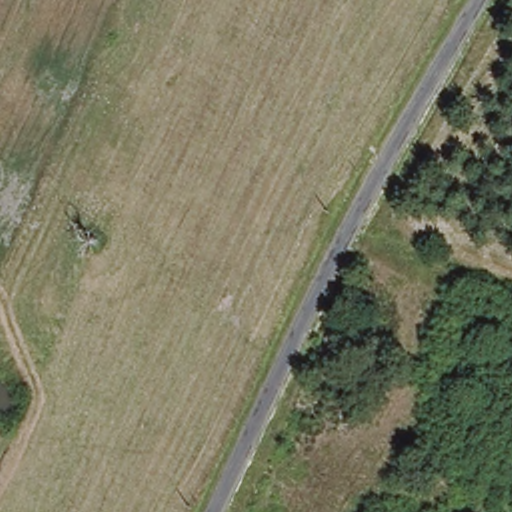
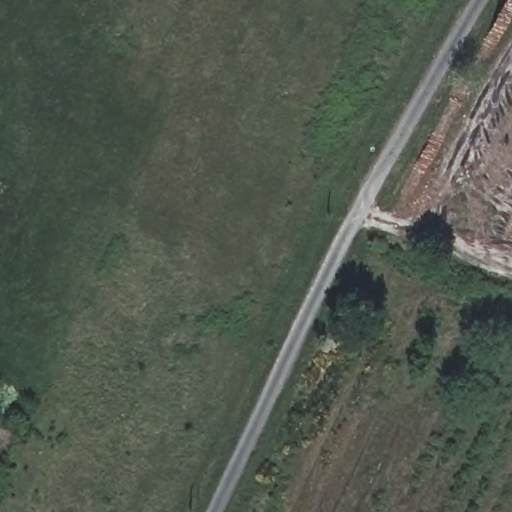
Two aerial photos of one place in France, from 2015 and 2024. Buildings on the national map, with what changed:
[]

